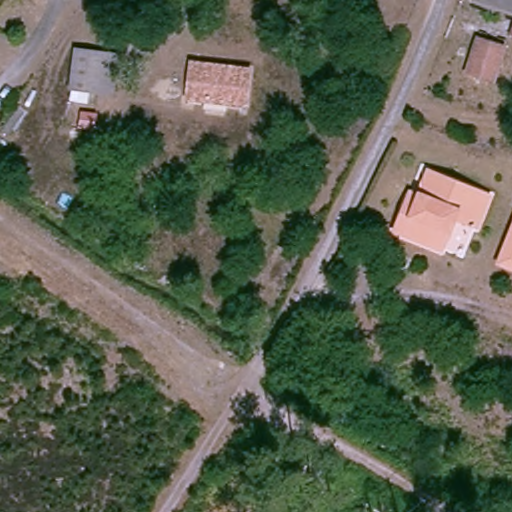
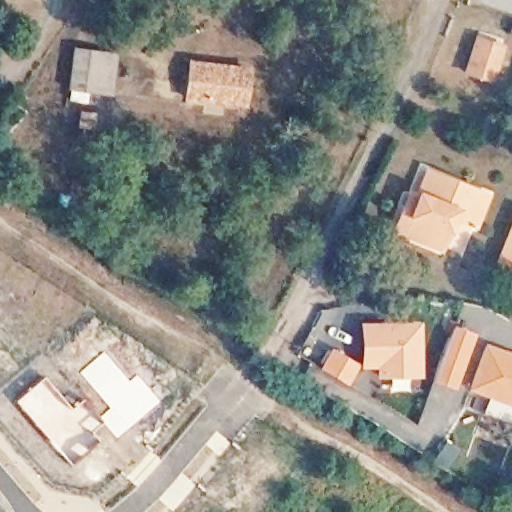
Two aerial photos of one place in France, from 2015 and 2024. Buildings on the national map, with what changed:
unchanged [(465,86),(469,55),(473,39),(499,45),(495,62),(490,90),(465,86)]
unchanged [(112,90),(98,88),(69,85),(75,46),(104,50),(117,51),(112,90)]
unchanged [(183,95),(186,61),(243,67),(238,102),(183,95)]
unchanged [(487,195),(475,225),(453,217),(441,250),(394,232),(403,207),(408,194),(417,197),(426,172),(487,195)]
unchanged [(494,262),(512,217),(512,271),(494,262)]
new [(421,377),(376,378),(375,368),(358,368),(346,386),(318,368),(331,348),(359,362),(359,322),(420,322),(421,377)]
new [(431,380),(451,325),(476,333),(456,387),(443,384),(431,380)]
new [(512,353),(512,406),(466,390),(483,343),(512,353)]
new [(41,375),(68,407),(80,396),(96,417),(108,406),(77,372),(102,350),(127,380),(136,372),(159,400),(114,437),(99,421),(88,431),(96,439),(67,463),(12,399),(41,375)]

